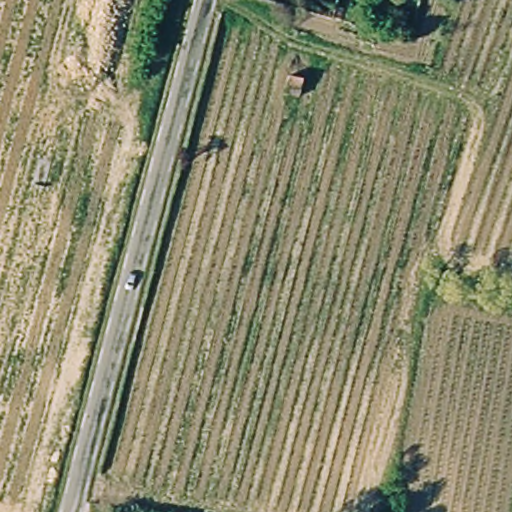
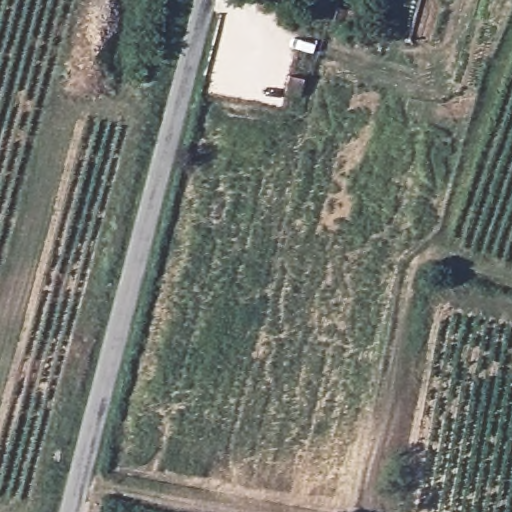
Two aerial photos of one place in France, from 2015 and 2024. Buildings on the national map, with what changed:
unchanged [(288,78),(304,82),(299,99),(283,94),(288,78)]

